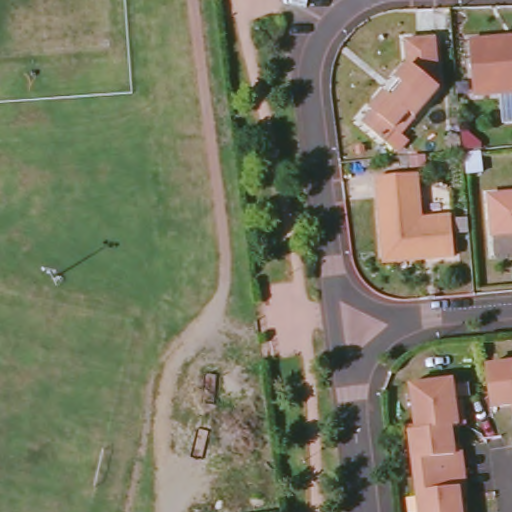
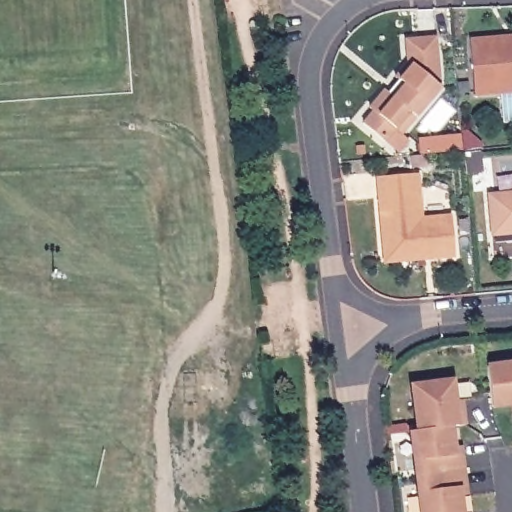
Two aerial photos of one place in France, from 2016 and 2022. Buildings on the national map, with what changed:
unchanged [(477,93),(472,39),(512,35),(512,90),(477,93)]
unchanged [(437,38),(442,89),(402,135),(396,130),(385,142),(365,123),(375,111),(371,108),(386,91),(395,98),(406,85),(400,81),(397,78),(410,63),(407,40),(437,38)]
unchanged [(418,178),(421,223),(451,221),(453,261),(430,262),(430,257),(383,260),(378,181),(418,178)]
unchanged [(492,234),(490,194),(512,192),(512,233),(492,234)]
unchanged [(512,359),(512,401),(492,404),(487,363),(512,359)]
unchanged [(460,405),(467,404),(468,412),(470,429),(456,431),(423,435),(417,389),(458,384),(460,405)]
unchanged [(456,431),(460,458),(467,457),(469,474),(465,474),(422,480),(417,436),(423,435),(456,431)]
unchanged [(469,474),(472,491),(464,492),(467,512),(426,512),(422,480),(465,474),(469,474)]

